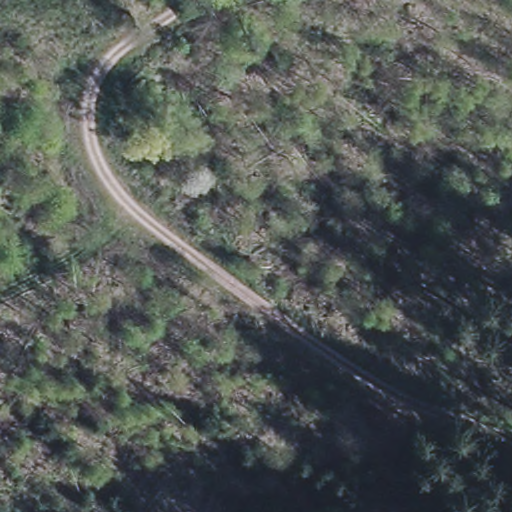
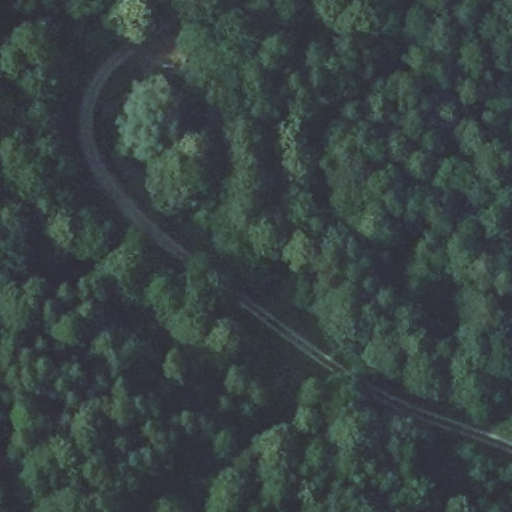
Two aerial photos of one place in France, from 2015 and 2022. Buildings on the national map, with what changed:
unchanged [(172,110),(169,117),(162,114),(164,107),(172,110)]

